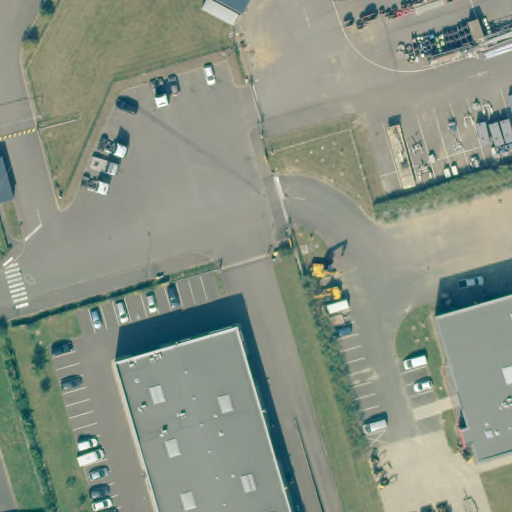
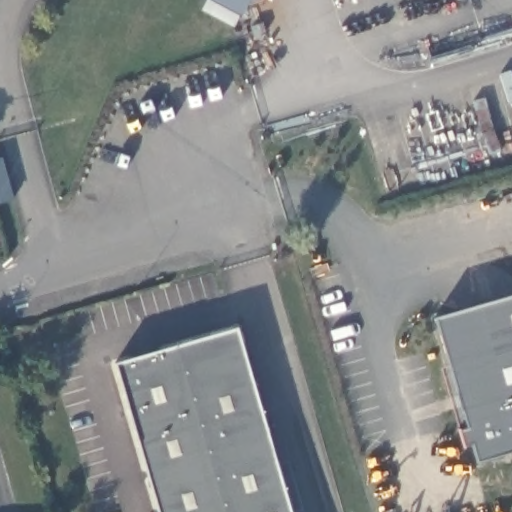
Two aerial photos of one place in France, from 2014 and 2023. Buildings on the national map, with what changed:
unchanged [(216,0),(252,0),(244,16),(216,0)]
unchanged [(512,295),(512,452),(481,461),(437,318),(512,295)]
unchanged [(235,327),(251,381),(258,408),(289,512),(157,512),(112,363),(235,327)]

